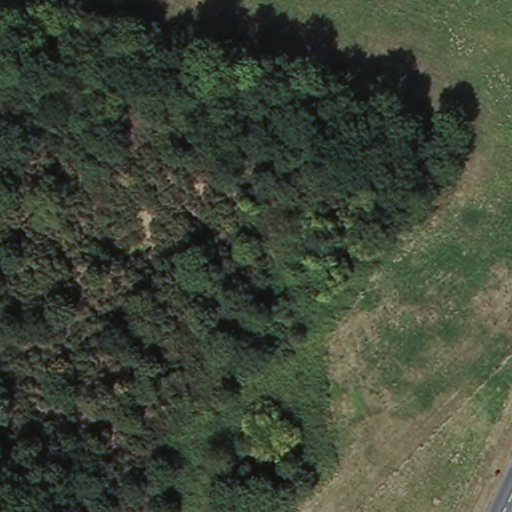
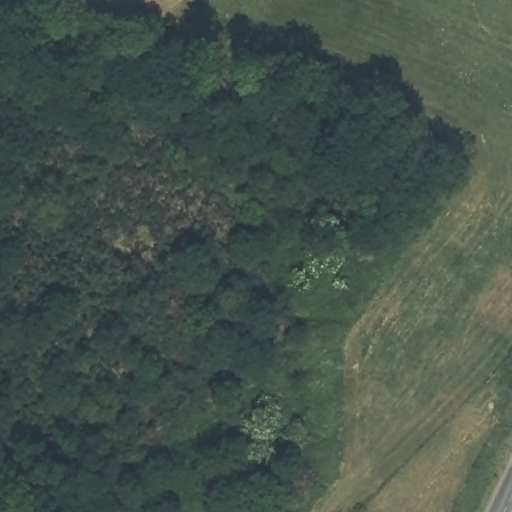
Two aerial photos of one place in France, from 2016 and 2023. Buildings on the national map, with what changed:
unchanged [(360,151),(358,163),(348,161),(351,149),(360,151)]

